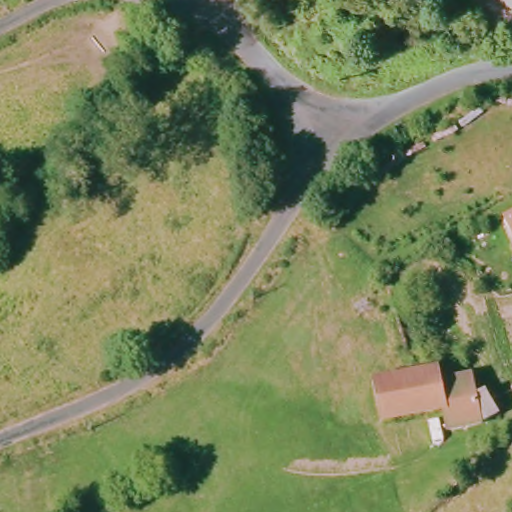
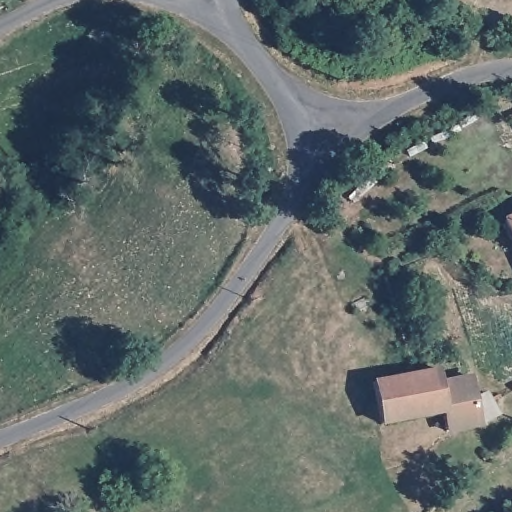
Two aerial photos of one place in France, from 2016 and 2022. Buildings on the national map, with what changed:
unchanged [(509,220),(512,218),(512,226),(509,220)]
unchanged [(487,427),(451,435),(445,417),(387,428),(376,387),(418,379),(442,374),(448,389),(477,382),(482,395),(490,392),(497,404),(501,418),(487,427)]

